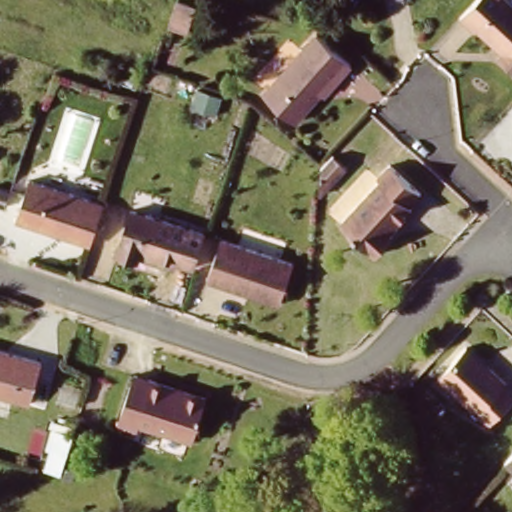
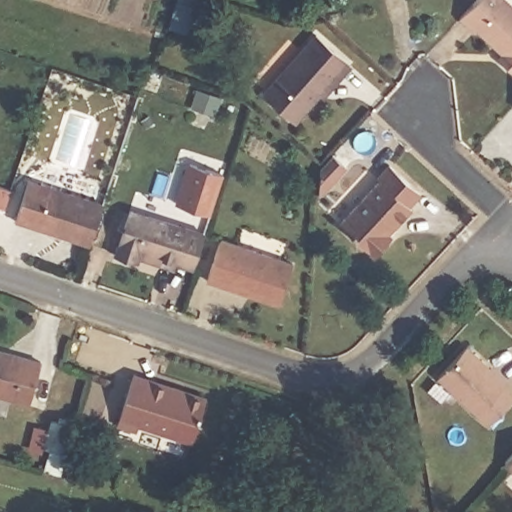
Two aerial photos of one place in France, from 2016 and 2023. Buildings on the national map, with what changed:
unchanged [(180,0),(197,6),(189,32),(170,27),(179,0),(180,0)]
unchanged [(506,0),(505,1),(512,9),(512,62),(504,55),(510,49),(483,24),(481,26),(466,14),(478,0),(506,0)]
unchanged [(324,91),(298,119),(267,90),(320,31),(355,63),(342,77),(327,94),(324,91)]
unchanged [(380,176),(378,175),(390,161),(420,190),(408,202),(410,204),(388,230),(391,231),(373,252),(340,222),(380,176)]
new [(188,165),(221,176),(208,216),(175,206),(188,165)]
unchanged [(13,222),(26,179),(102,204),(97,221),(90,245),(13,222)]
unchanged [(140,252),(138,258),(117,250),(131,206),(207,230),(195,265),(179,260),(176,265),(140,252)]
unchanged [(292,260),(279,297),(206,275),(219,236),(292,260)]
unchanged [(501,383),(512,393),(512,396),(488,420),(440,373),(465,346),(467,345),(486,362),(505,380),(501,383)]
unchanged [(0,351),(42,362),(28,406),(0,399),(0,351)]
unchanged [(195,436),(141,418),(139,425),(120,418),(135,370),(179,383),(189,386),(208,393),(195,436)]
unchanged [(46,428),(71,434),(60,477),(42,472),(46,451),(41,450),(46,428)]
unchanged [(512,455),(512,457),(511,456),(512,455)]

